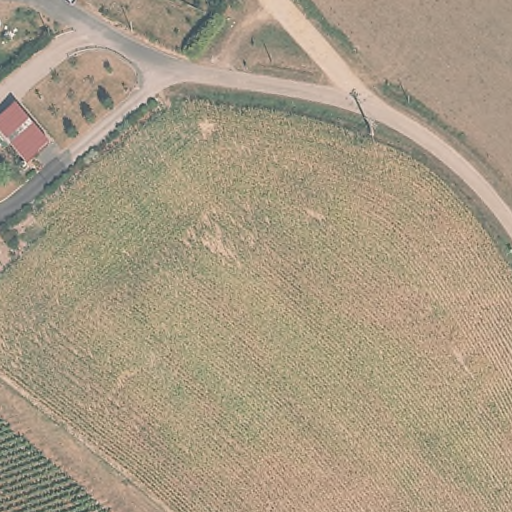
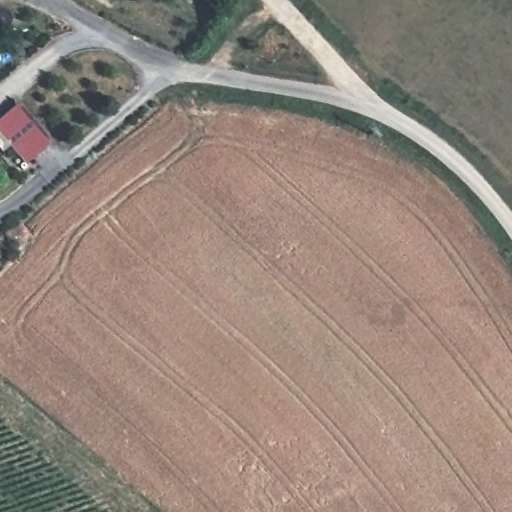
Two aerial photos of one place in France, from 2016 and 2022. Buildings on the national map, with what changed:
unchanged [(0,137),(0,123),(21,101),(56,139),(27,166),(0,137)]

